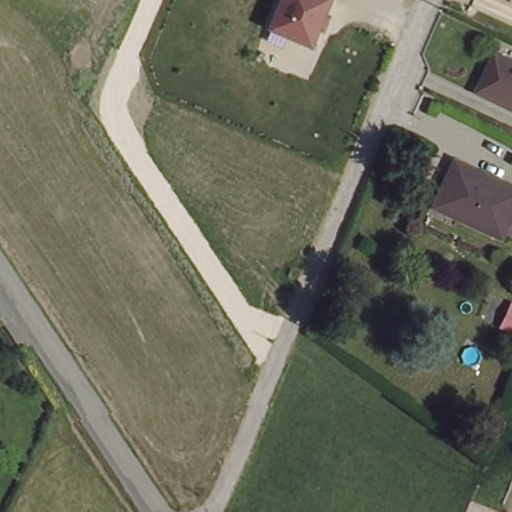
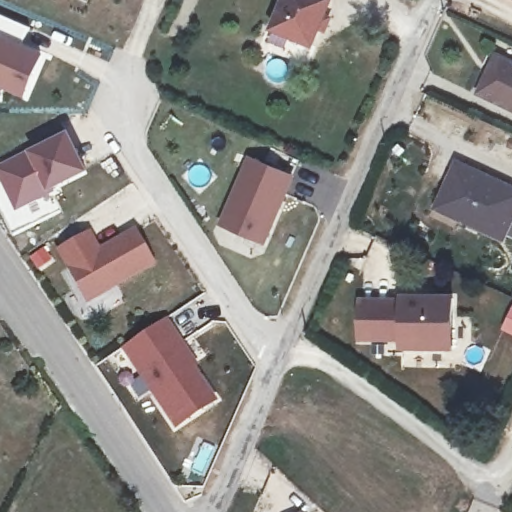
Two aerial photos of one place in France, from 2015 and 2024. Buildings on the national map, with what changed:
unchanged [(331,16),(326,34),(321,33),(314,48),(271,30),(282,0),(332,0),(327,13),(331,16)]
new [(23,44),(44,54),(25,98),(0,87),(0,16),(29,29),(23,44)]
unchanged [(492,46),(512,56),(512,100),(478,84),(492,46)]
new [(88,170),(48,189),(15,210),(0,178),(0,165),(28,149),(68,130),(88,170)]
new [(265,246),(214,224),(246,156),(296,178),(265,246)]
unchanged [(512,217),(504,234),(438,204),(459,159),(512,184),(512,217)]
new [(156,264),(86,304),(55,250),(90,229),(100,245),(133,227),(156,264)]
new [(396,308),(396,303),(444,304),(446,354),(396,354),(396,346),(353,346),(353,308),(396,308)]
new [(174,429),(120,349),(167,319),(199,364),(195,367),(218,399),(174,429)]

